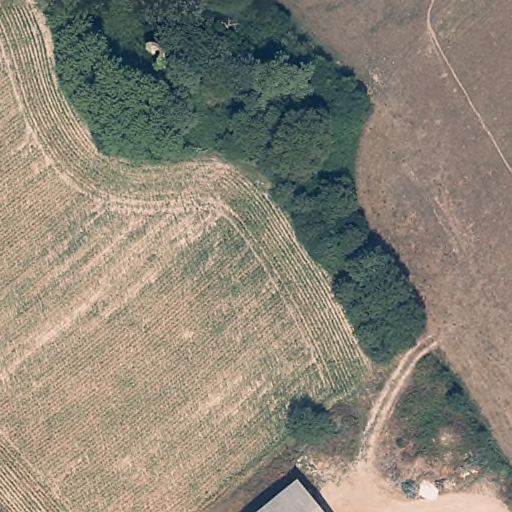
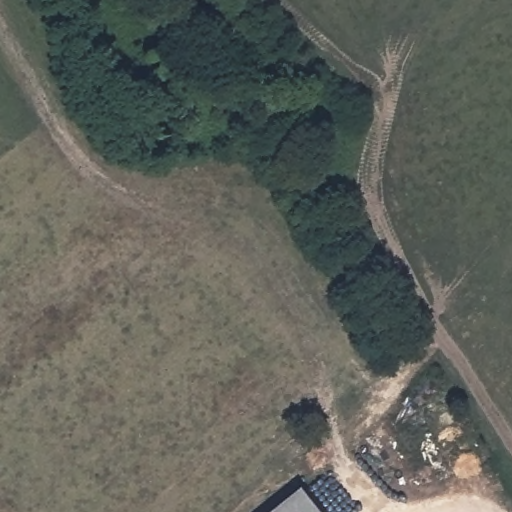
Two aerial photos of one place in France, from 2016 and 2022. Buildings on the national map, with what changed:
unchanged [(172,86),(166,88),(159,89),(153,87),(147,84),(143,79),(141,73),(140,66),(142,60),(146,54),(151,51),(157,49),(164,49),(170,51),(175,55),(179,60),(181,66),(180,73),(179,77),(172,86)]
unchanged [(324,512),(274,512),(305,488),(324,512)]

